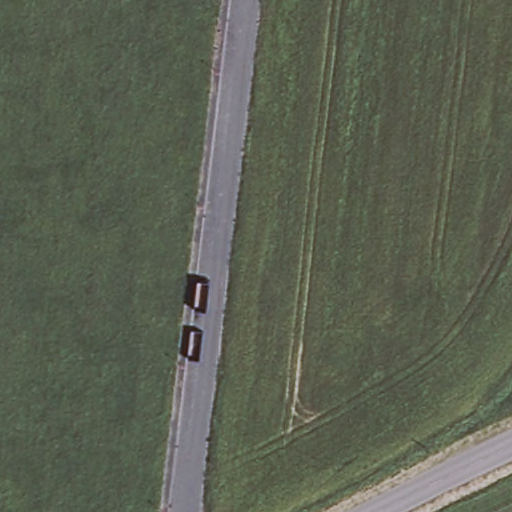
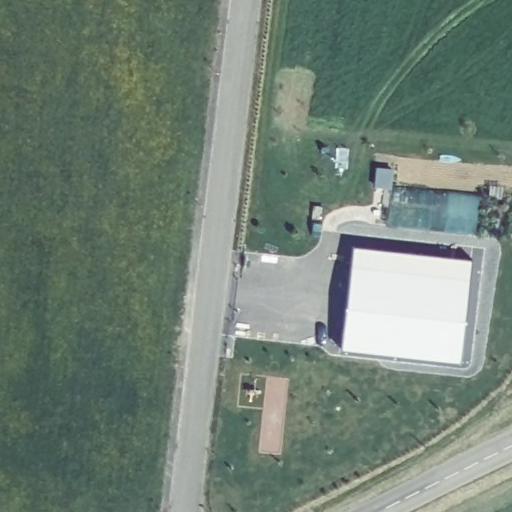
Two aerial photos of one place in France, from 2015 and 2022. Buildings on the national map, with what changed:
new [(355,246),(472,260),(460,360),(342,347),(355,246)]

